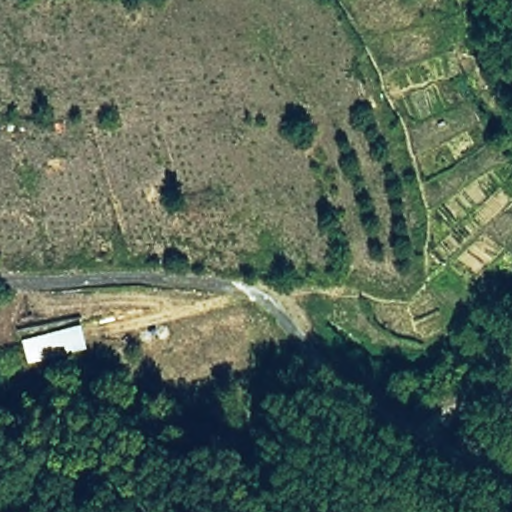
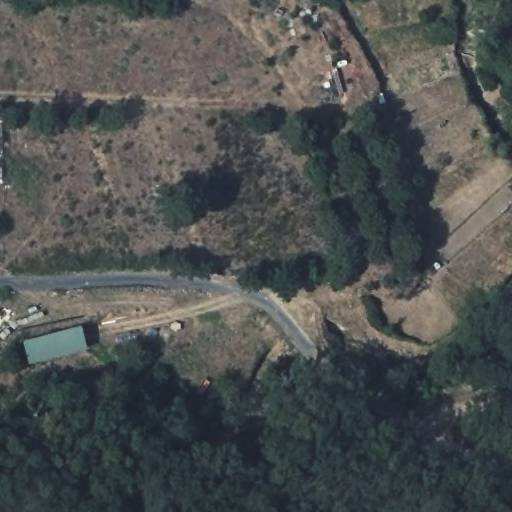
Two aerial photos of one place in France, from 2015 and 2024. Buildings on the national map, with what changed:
unchanged [(83,358),(27,370),(19,346),(76,331),(83,358)]

